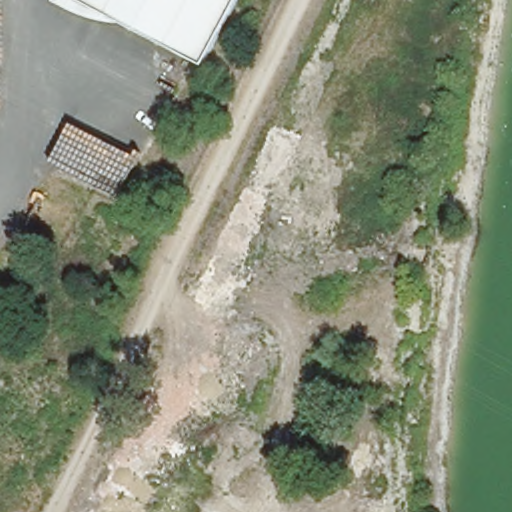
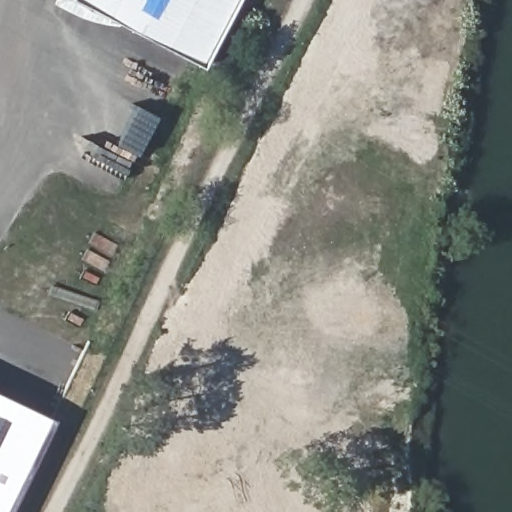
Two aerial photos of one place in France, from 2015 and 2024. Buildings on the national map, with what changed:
unchanged [(55,8),(59,0),(235,0),(200,66),(117,25),(55,8)]
new [(2,512),(0,512),(0,397),(46,419),(2,512)]

